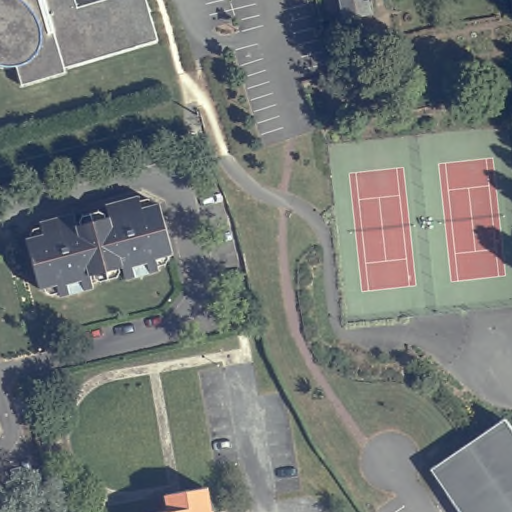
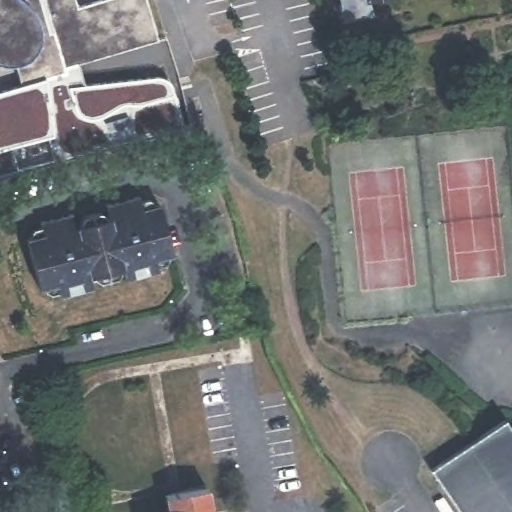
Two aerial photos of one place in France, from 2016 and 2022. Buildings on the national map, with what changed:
unchanged [(82,0),(147,0),(157,35),(51,67),(52,71),(21,80),(15,62),(14,62),(13,62),(12,62),(11,62),(10,62),(7,62),(6,62),(4,62),(3,62),(2,62),(0,61),(0,0),(76,0),(77,2),(82,0)]
unchanged [(367,0),(370,12),(342,17),(340,0),(367,0)]
new [(153,77),(165,79),(171,86),(183,128),(53,162),(47,139),(12,147),(19,172),(0,176),(0,91),(22,85),(21,80),(52,71),(51,67),(64,62),(76,59),(84,85),(153,77)]
unchanged [(27,235),(43,231),(40,219),(73,210),(77,222),(92,217),(89,205),(139,191),(142,204),(159,199),(172,249),(155,254),(158,267),(125,275),(122,262),(90,271),(93,283),(59,292),(57,279),(39,284),(27,235)]
unchanged [(484,432),(503,419),(512,431),(512,512),(459,512),(430,470),(484,432)]
unchanged [(169,495),(213,487),(217,512),(172,512),(169,495)]

